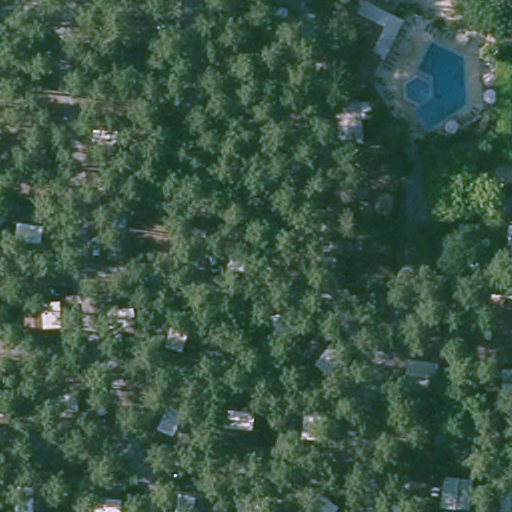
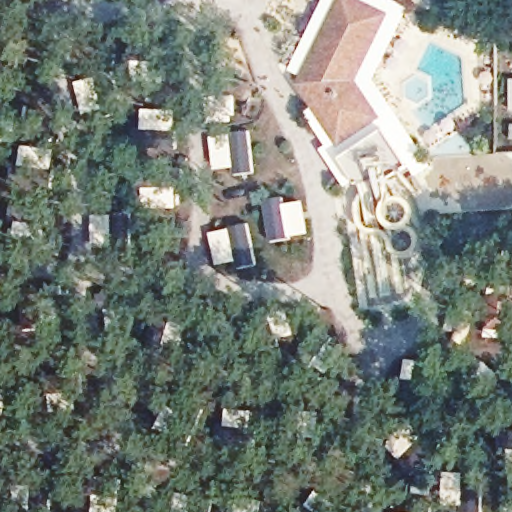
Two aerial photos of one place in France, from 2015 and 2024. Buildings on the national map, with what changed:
new [(433,167),(417,178),(410,169),(377,185),(359,182),(347,190),(323,151),(328,147),(308,113),(315,109),(301,85),(304,77),(292,71),(327,0),(393,0),(411,9),(376,81),(433,167)]
demolished [(383,66),(378,64),(364,93),(313,69),(340,9),(356,16),(361,0),(362,0),(405,22),(383,66)]
unchanged [(505,18),(512,17),(512,41),(506,42),(505,18)]

